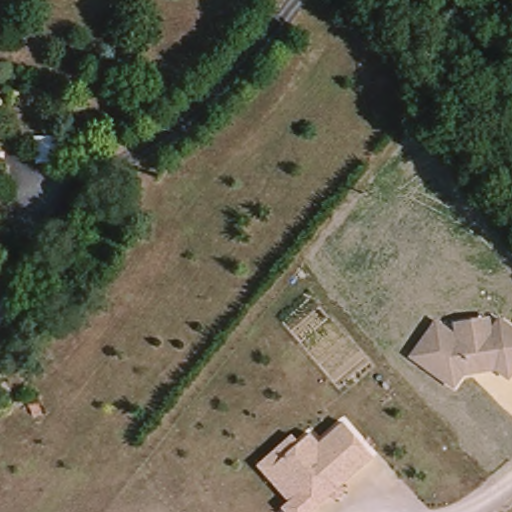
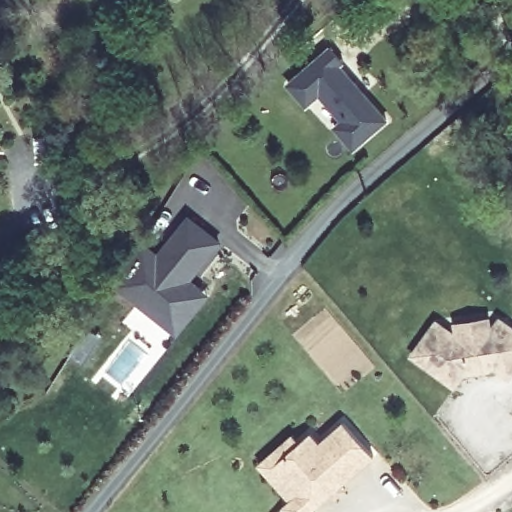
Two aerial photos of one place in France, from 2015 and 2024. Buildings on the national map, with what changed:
new [(354,152),(332,127),(340,121),(320,97),(305,108),(285,83),(330,45),(345,62),(342,65),(388,120),(354,152)]
new [(210,295),(178,337),(112,283),(143,239),(159,252),(187,214),(222,241),(192,281),(210,295)]
unchanged [(435,320),(460,339),(464,334),(482,331),(486,335),(498,317),(512,327),(512,370),(510,373),(500,366),(473,370),(462,372),(453,385),(411,354),(433,323),(435,320)]
new [(87,319),(102,329),(94,341),(85,355),(70,346),(80,332),(87,319)]
unchanged [(302,441),(313,431),(322,441),(346,420),(377,454),(342,484),(339,481),(333,486),(336,490),(315,508),(277,464),(302,441)]
unchanged [(293,499),(261,463),(295,433),(302,441),(277,464),(315,508),(312,511),(311,510),(309,512),(292,512),(285,505),(293,499)]
unchanged [(309,512),(311,510),(312,511),(313,512),(309,512)]

